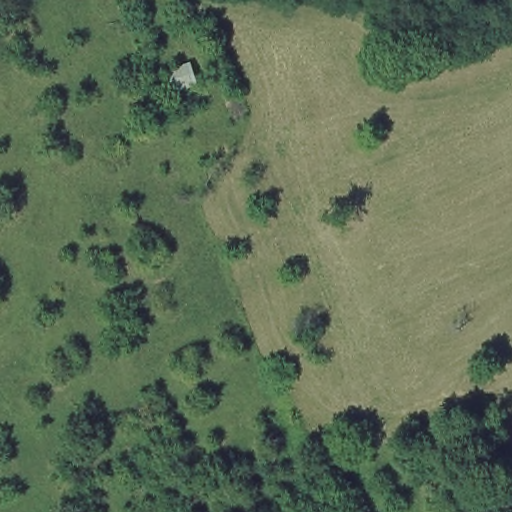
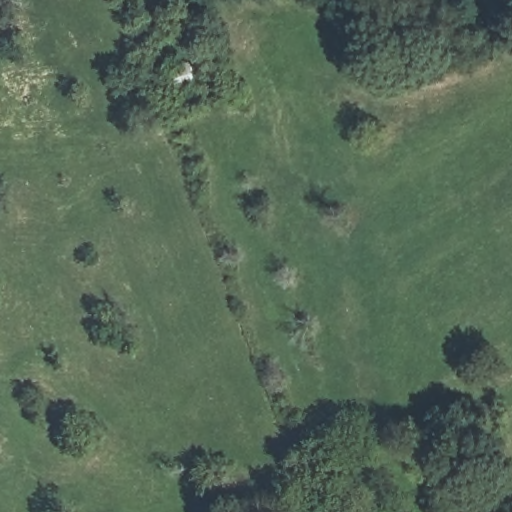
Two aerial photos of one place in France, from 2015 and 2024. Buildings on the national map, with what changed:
unchanged [(205,88),(178,95),(171,71),(198,61),(205,88)]

